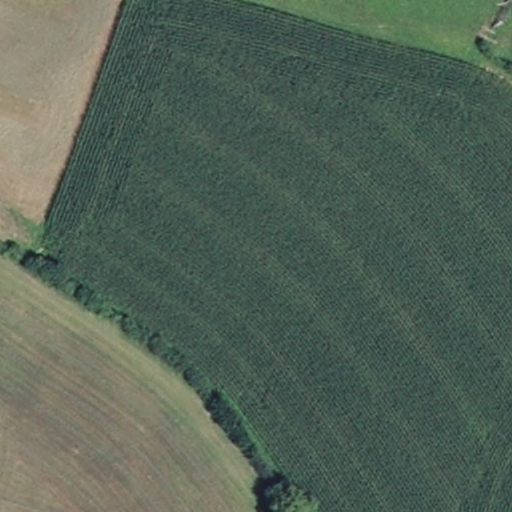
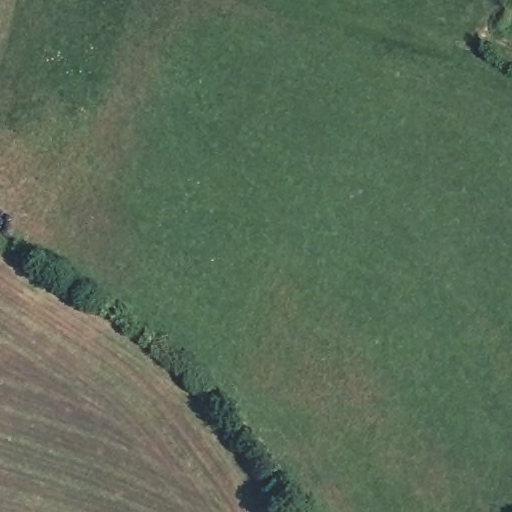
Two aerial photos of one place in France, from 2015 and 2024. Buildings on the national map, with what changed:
[]

